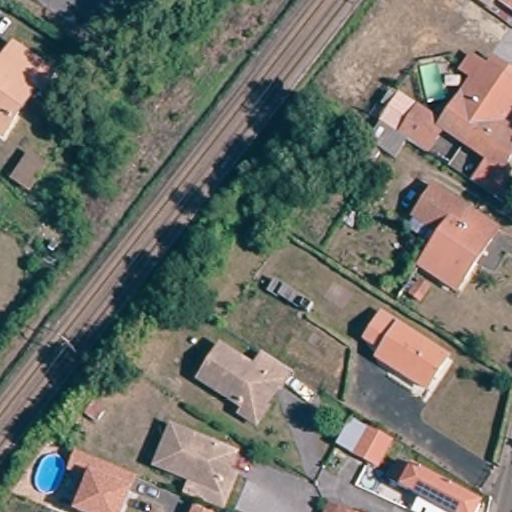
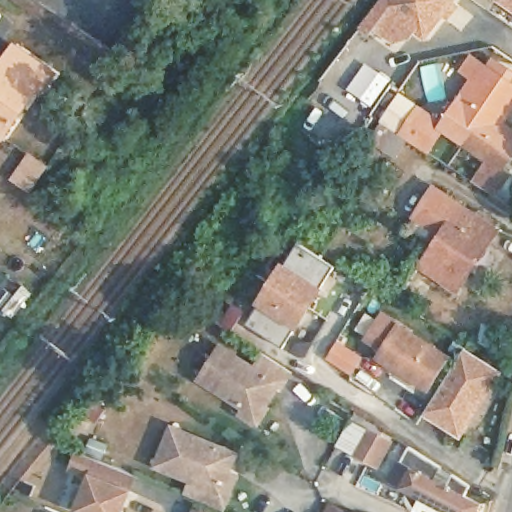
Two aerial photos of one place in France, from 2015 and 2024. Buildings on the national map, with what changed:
new [(394,40),(376,26),(389,10),(388,9),(384,5),(388,0),(452,0),(457,5),(445,20),(440,15),(423,36),(414,29),(407,37),(394,40)]
unchanged [(489,5),(481,0),(492,0),(489,5)]
unchanged [(0,57),(6,60),(14,49),(51,73),(40,90),(35,87),(4,134),(0,131),(0,57)]
unchanged [(368,137),(379,120),(399,92),(438,119),(449,101),(456,105),(484,65),(488,68),(489,67),(494,60),(512,73),(512,76),(508,81),(508,82),(512,85),(512,106),(501,122),(512,131),(512,152),(501,169),(508,174),(492,195),(471,180),(487,159),(441,126),(424,150),(404,136),(393,154),(368,137)]
unchanged [(6,175),(23,155),(43,170),(26,191),(6,175)]
unchanged [(457,290),(420,266),(440,235),(412,216),(432,185),(497,226),(487,242),(476,259),(457,290)]
new [(322,287),(326,289),(299,331),(296,328),(285,347),(249,326),(262,305),(258,302),(284,260),(290,263),(300,246),(335,268),(322,287)]
unchanged [(414,381),(375,355),(379,349),(365,340),(382,314),(445,355),(431,376),(424,387),(414,381)]
unchanged [(195,373),(217,342),(250,365),(260,351),(286,368),(275,384),(269,380),(254,402),(260,406),(249,421),(236,411),(240,405),(195,373)]
new [(465,357),(498,380),(458,438),(425,416),(465,357)]
unchanged [(334,437),(345,413),(390,435),(378,457),(334,437)]
unchanged [(219,501),(180,483),(185,472),(151,457),(168,420),(231,447),(223,465),(232,469),(219,501)]
unchanged [(124,512),(77,512),(73,510),(86,480),(67,472),(75,450),(138,477),(124,512)]
unchanged [(388,484),(398,462),(489,507),(486,512),(423,512),(427,502),(388,484)]
demolished [(359,509),(357,512),(333,512),(339,499),(359,509)]
new [(350,512),(325,512),(329,502),(350,512)]
unchanged [(191,512),(193,507),(206,512),(191,512)]

